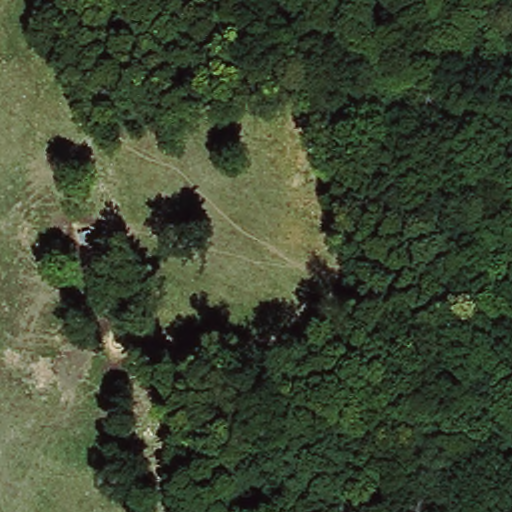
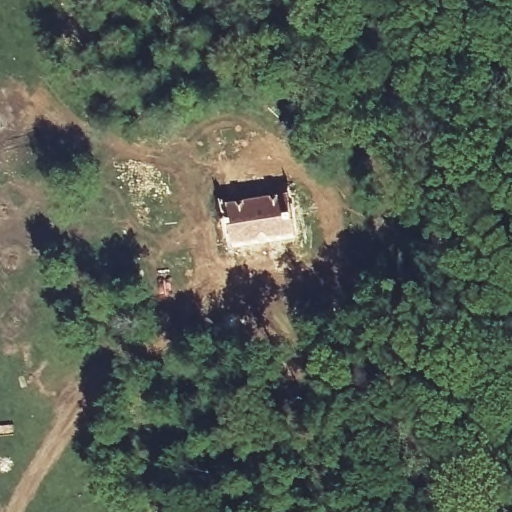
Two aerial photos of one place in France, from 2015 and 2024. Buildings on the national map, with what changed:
new [(294,190),(299,237),(229,249),(221,200),(294,190)]

